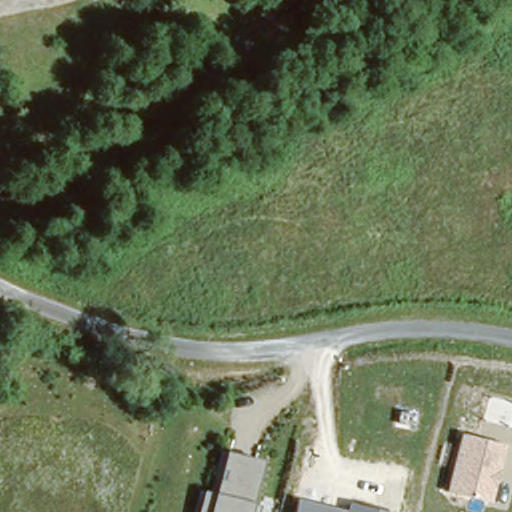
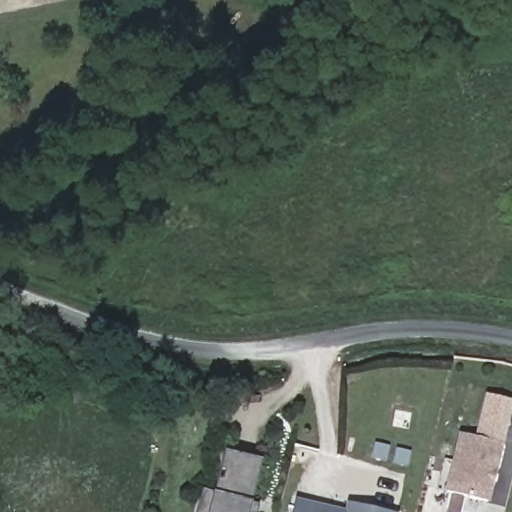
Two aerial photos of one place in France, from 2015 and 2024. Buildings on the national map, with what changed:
new [(512,400),(512,410),(503,444),(475,438),(485,393),(512,400)]
unchanged [(459,435),(475,438),(503,444),(490,502),(447,491),(459,435)]
unchanged [(213,512),(223,467),(228,467),(231,454),(264,462),(253,512),(213,512)]
unchanged [(331,509),(330,512),(297,512),(299,502),(331,509)]
unchanged [(347,512),(350,505),(378,512),(347,512)]

